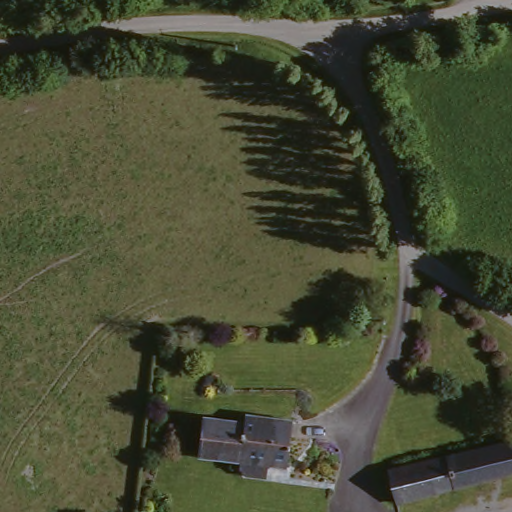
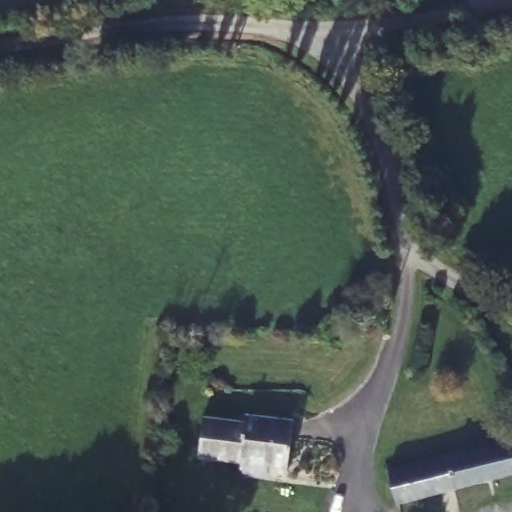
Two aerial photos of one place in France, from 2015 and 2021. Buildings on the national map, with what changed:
unchanged [(239,423),(241,415),(289,422),(281,472),(261,469),(259,483),(231,479),(234,465),(194,458),(199,417),(239,423)]
unchanged [(383,469),(512,442),(512,478),(391,504),(383,469)]

